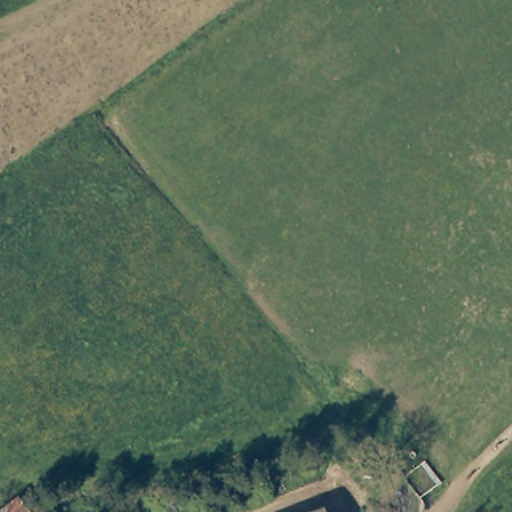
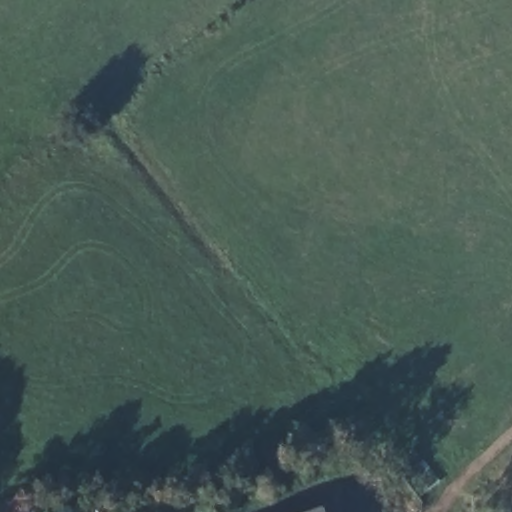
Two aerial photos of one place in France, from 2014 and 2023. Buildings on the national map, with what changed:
unchanged [(23,512),(2,512),(14,502),(23,512)]
unchanged [(327,505),(329,512),(307,512),(327,505)]

